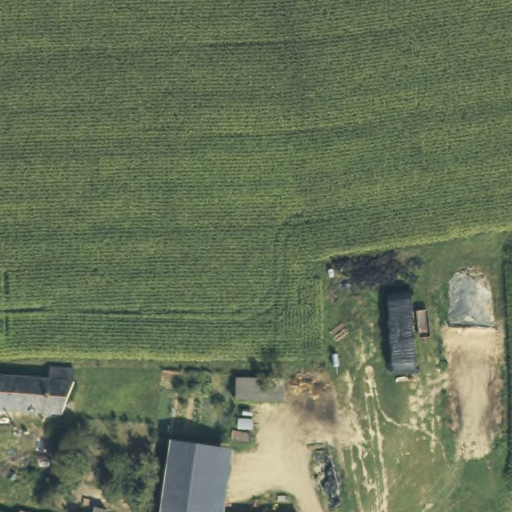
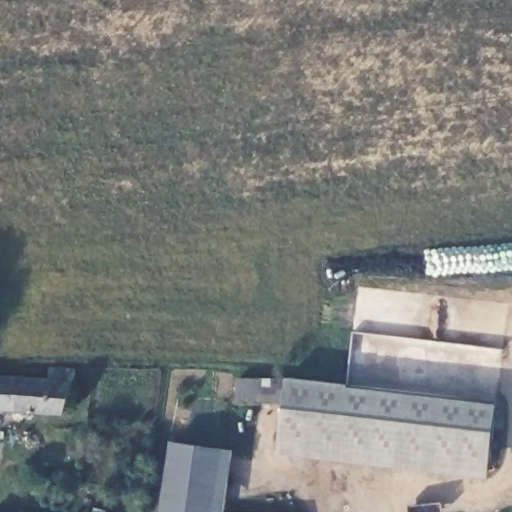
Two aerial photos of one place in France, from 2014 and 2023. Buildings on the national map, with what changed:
unchanged [(15,408),(17,377),(49,377),(50,367),(77,367),(73,390),(65,410),(15,408)]
unchanged [(0,376),(17,377),(15,408),(0,408),(0,376)]
new [(349,383),(348,386),(498,404),(489,478),(278,455),(285,377),(349,383)]
unchanged [(238,401),(239,380),(282,380),(282,402),(238,401)]
unchanged [(223,452),(214,512),(164,512),(173,443),(223,452)]
unchanged [(228,510),(290,512),(227,512),(228,510)]

